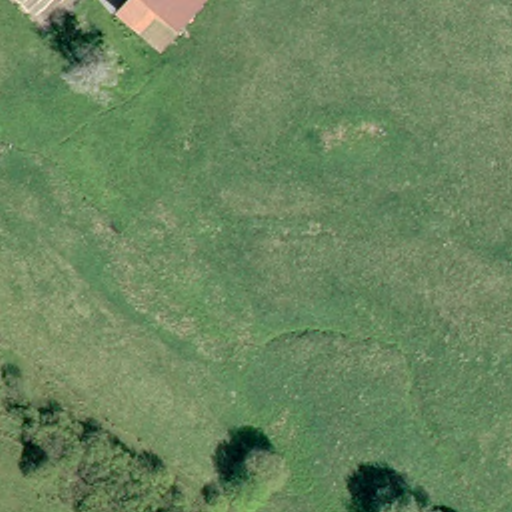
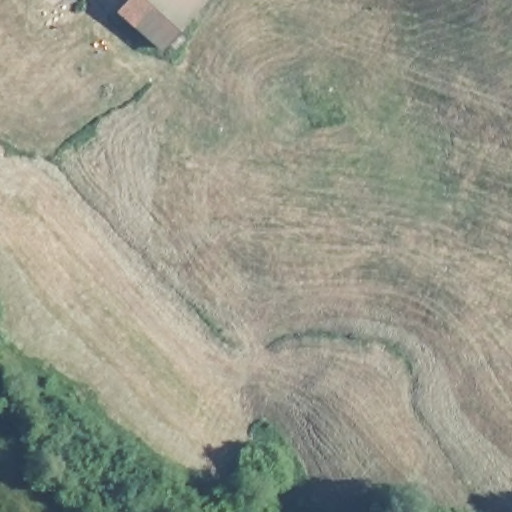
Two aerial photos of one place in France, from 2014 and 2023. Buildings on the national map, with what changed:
unchanged [(156,65),(142,53),(138,49),(114,25),(139,0),(176,0),(155,19),(179,45),(156,65)]
unchanged [(176,0),(189,0),(208,20),(214,26),(185,52),(179,45),(155,19),(176,0)]

